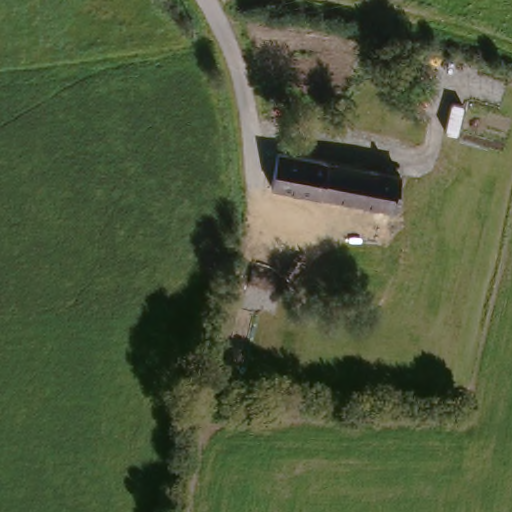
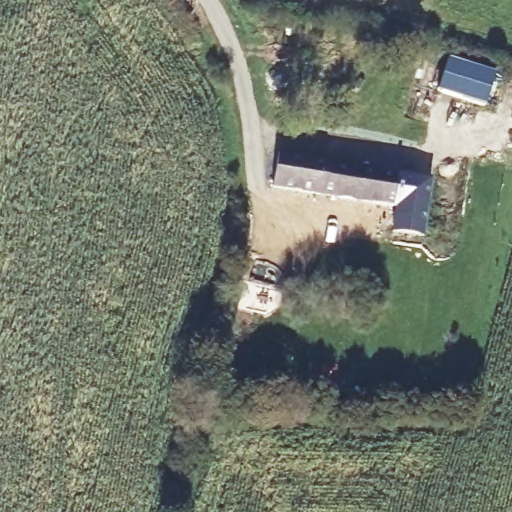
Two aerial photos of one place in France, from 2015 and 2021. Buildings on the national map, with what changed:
new [(448,58),(495,75),(485,107),(437,92),(448,58)]
unchanged [(401,177),(395,212),(271,191),(277,155),(401,177)]

